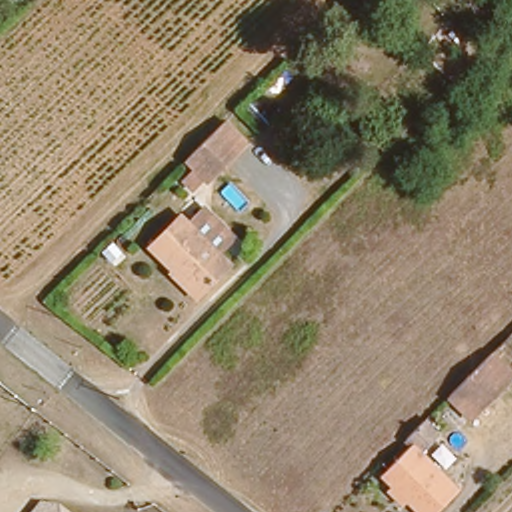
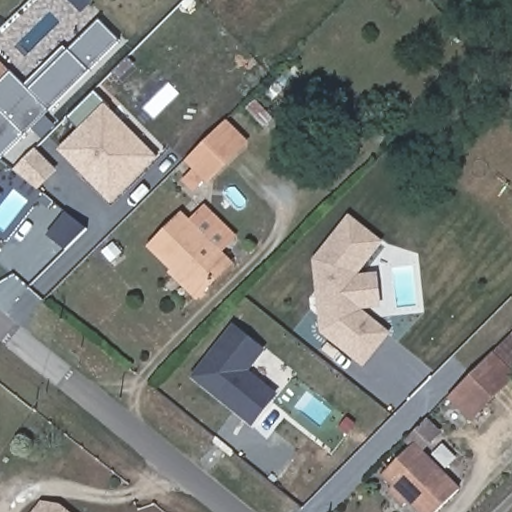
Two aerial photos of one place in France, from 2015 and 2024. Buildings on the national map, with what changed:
new [(0,60),(24,85),(64,47),(68,52),(99,21),(120,42),(0,159),(0,60)]
new [(112,205),(58,150),(78,129),(67,119),(95,92),(158,157),(112,205)]
unchanged [(251,140),(215,176),(206,166),(193,154),(229,117),(241,131),(251,140)]
new [(14,170),(35,148),(58,171),(37,192),(14,170)]
new [(0,197),(0,195),(1,196),(0,197)]
unchanged [(236,233),(223,249),(234,261),(198,298),(146,246),(181,209),(190,220),(207,202),(236,233)]
new [(46,235),(65,212),(86,229),(67,252),(46,235)]
new [(358,274),(378,272),(382,308),(362,311),(390,334),(363,367),(320,332),(312,261),(348,215),(383,242),(358,274)]
new [(249,372),(278,395),(253,427),(189,377),(233,323),(266,351),(249,372)]
unchanged [(511,375),(471,417),(450,397),(491,355),(511,375)]
unchanged [(395,484),(385,474),(391,468),(415,445),(459,490),(437,512),(424,512),(411,500),(405,506),(389,490),(395,484)]
unchanged [(57,503),(68,512),(29,512),(38,500),(57,503)]

